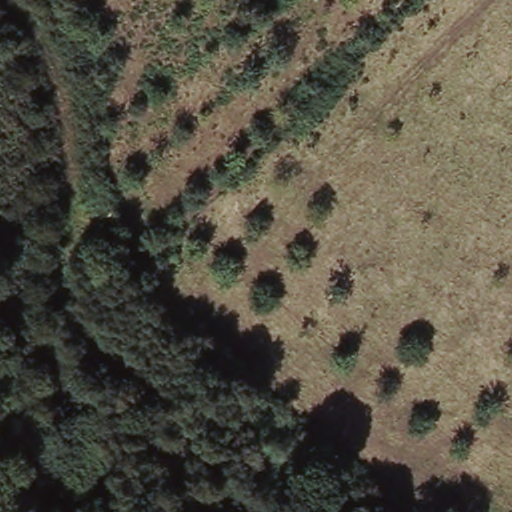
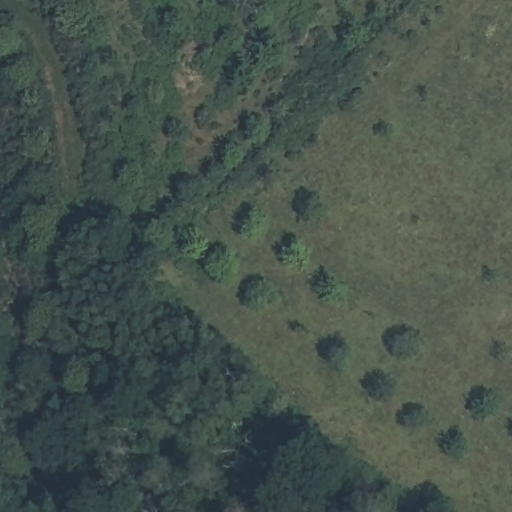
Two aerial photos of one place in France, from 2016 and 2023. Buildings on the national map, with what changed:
[]

